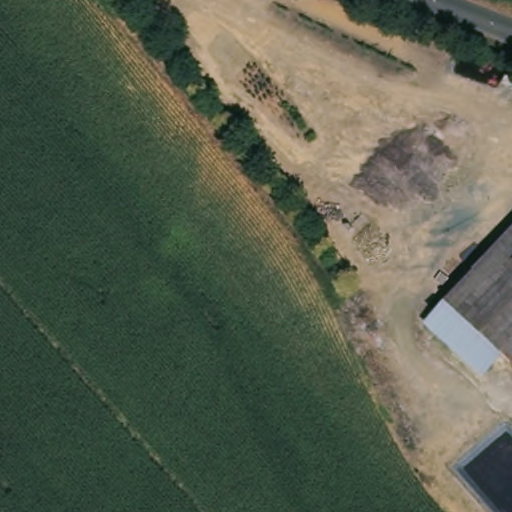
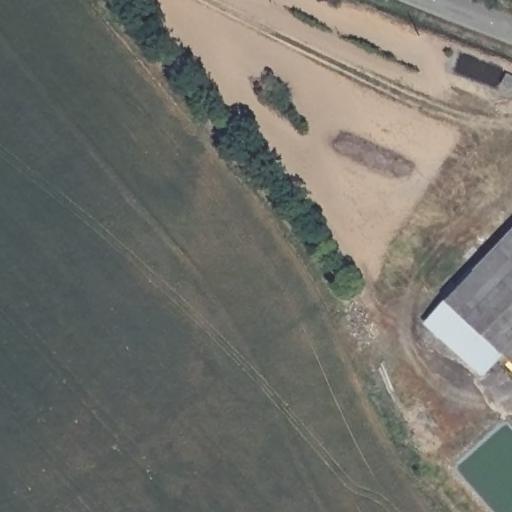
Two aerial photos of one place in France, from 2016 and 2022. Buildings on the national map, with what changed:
unchanged [(501,363),(488,379),(458,353),(431,330),(512,235),(512,372),(501,363)]

